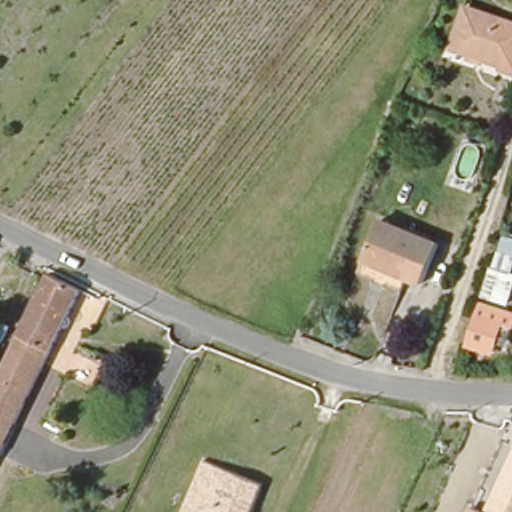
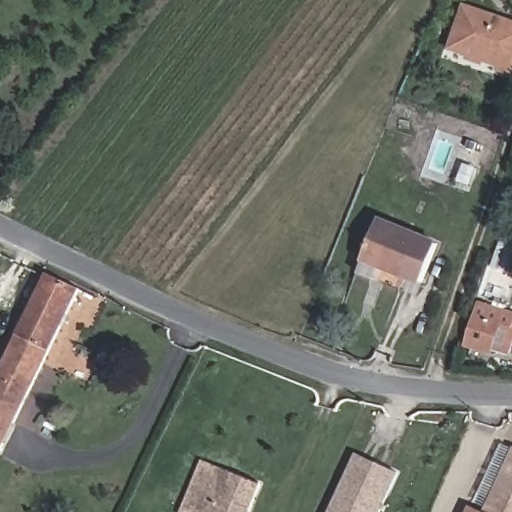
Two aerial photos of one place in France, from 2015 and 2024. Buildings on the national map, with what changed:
unchanged [(512,69),(451,52),(465,9),(512,23),(512,69)]
unchanged [(376,221),(438,241),(425,278),(409,273),(404,291),(359,277),(376,221)]
unchanged [(496,264),(500,254),(512,258),(512,298),(510,305),(485,296),(496,264)]
unchanged [(0,457),(0,374),(43,283),(75,297),(0,457)]
unchanged [(481,306),(492,310),(507,314),(512,316),(512,331),(502,328),(493,353),(468,345),(477,320),(481,306)]
new [(382,512),(330,512),(357,454),(378,463),(399,473),(382,512)]
unchanged [(249,512),(181,512),(180,512),(202,457),(261,481),(249,512)]
unchanged [(512,512),(487,512),(512,458),(512,512)]
unchanged [(485,512),(471,512),(472,508),(485,512)]

